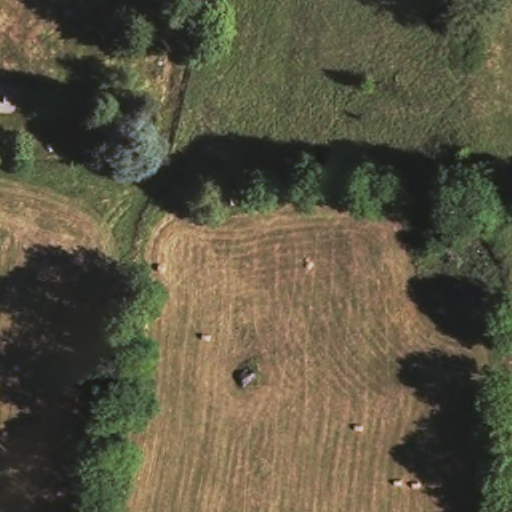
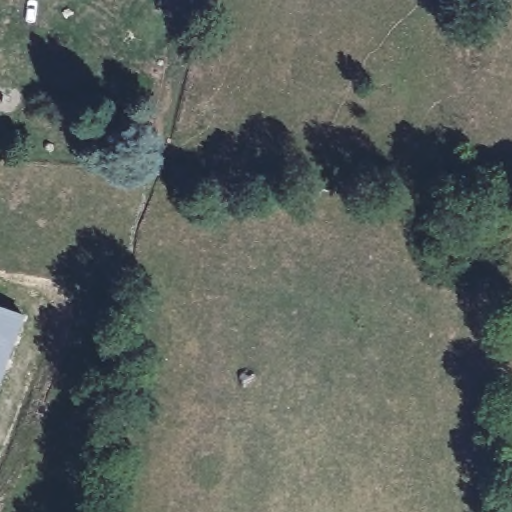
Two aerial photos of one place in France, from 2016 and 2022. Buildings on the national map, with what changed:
new [(26,323),(4,380),(0,391),(0,314),(26,323)]

